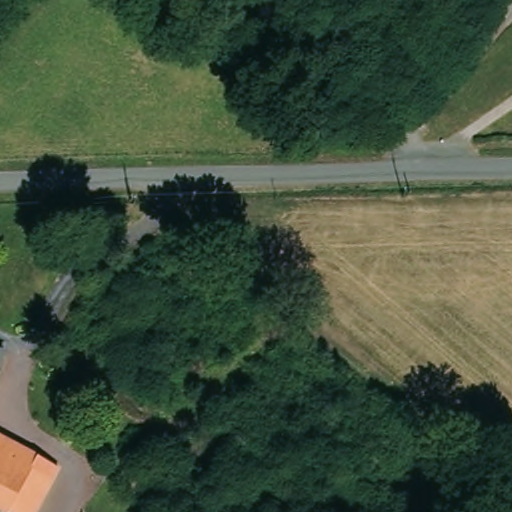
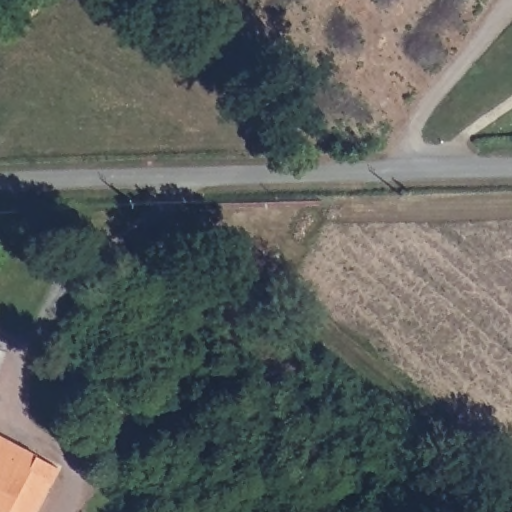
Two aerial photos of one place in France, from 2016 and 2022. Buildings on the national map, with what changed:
unchanged [(54,468),(30,512),(11,512),(0,507),(0,441),(54,468)]

